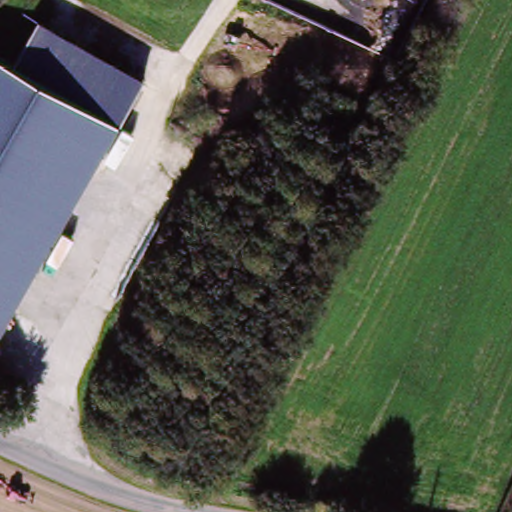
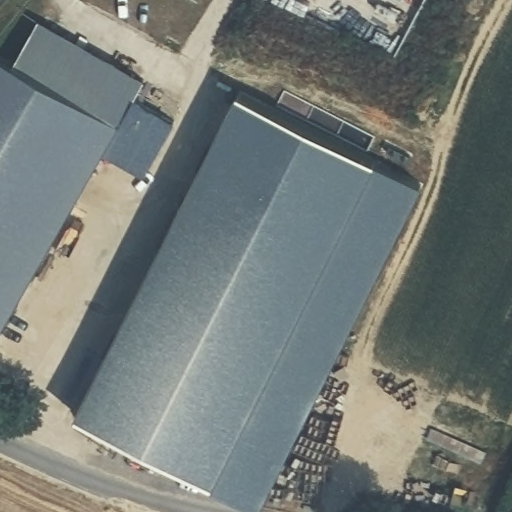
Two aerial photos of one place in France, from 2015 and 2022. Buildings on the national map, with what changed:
unchanged [(11,64),(36,20),(141,82),(0,332),(0,57),(11,64)]
new [(78,412),(239,91),(376,160),(213,484),(78,412)]
new [(175,124),(148,172),(104,147),(132,99),(175,124)]
new [(376,160),(422,183),(259,507),(213,484),(376,160)]

